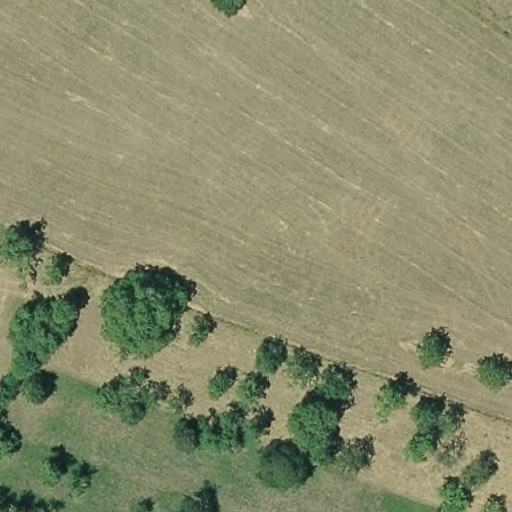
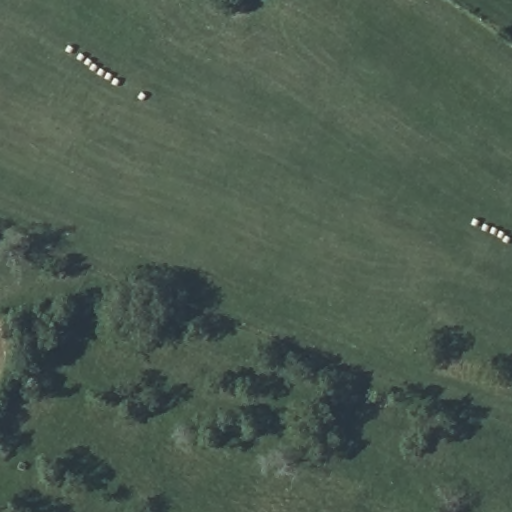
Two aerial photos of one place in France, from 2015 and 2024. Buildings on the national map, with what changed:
[]

